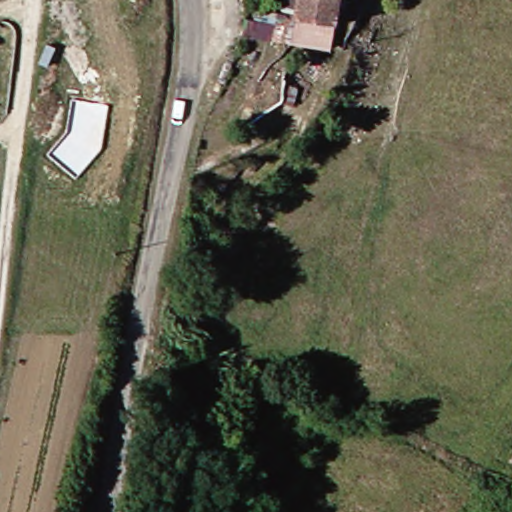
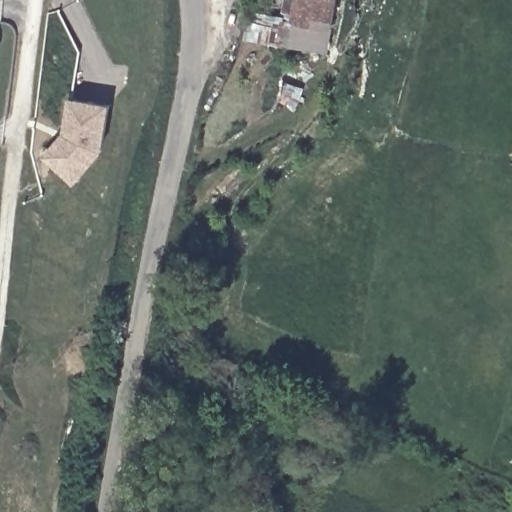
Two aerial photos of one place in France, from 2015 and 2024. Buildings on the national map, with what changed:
unchanged [(291,31),(298,7),(300,0),(343,0),(337,20),(330,41),(291,31)]
new [(67,133),(72,100),(108,105),(102,149),(75,179),(48,155),(67,133)]

